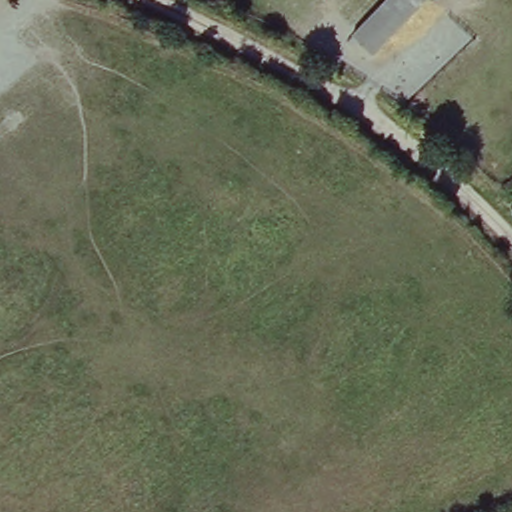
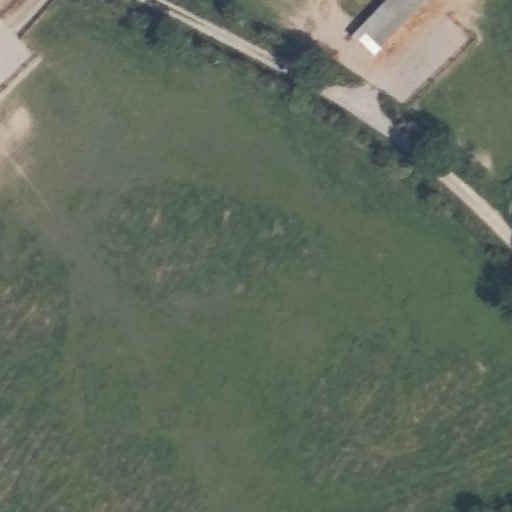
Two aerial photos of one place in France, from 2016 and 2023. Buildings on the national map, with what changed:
unchanged [(347,29),(379,0),(426,0),(371,53),(347,29)]

